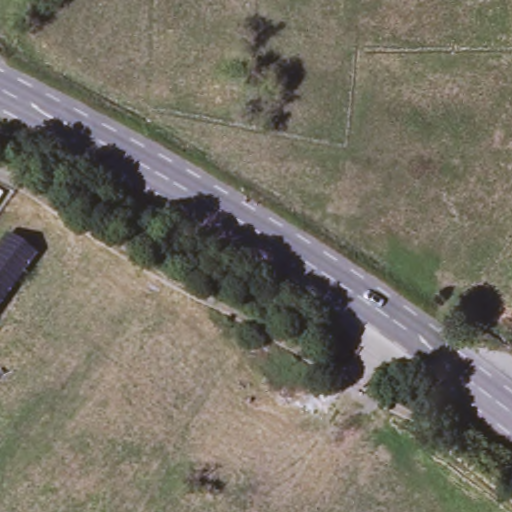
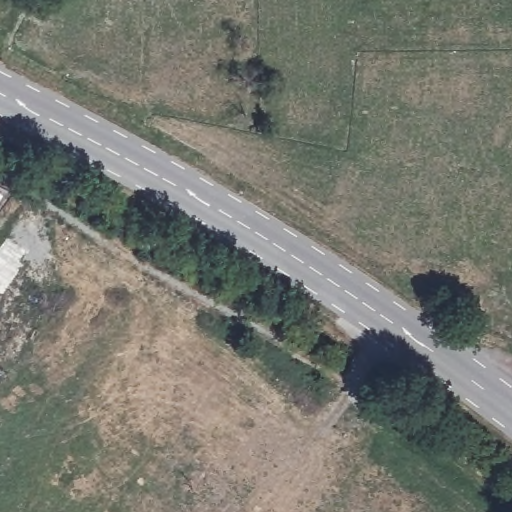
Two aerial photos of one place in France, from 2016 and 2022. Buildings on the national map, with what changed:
unchanged [(36,255),(0,306),(0,247),(8,236),(36,255)]

